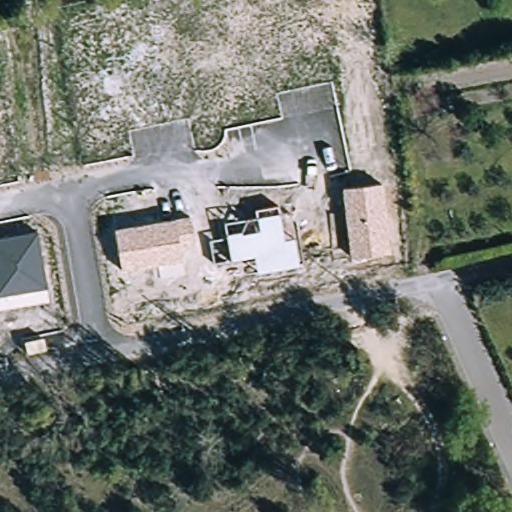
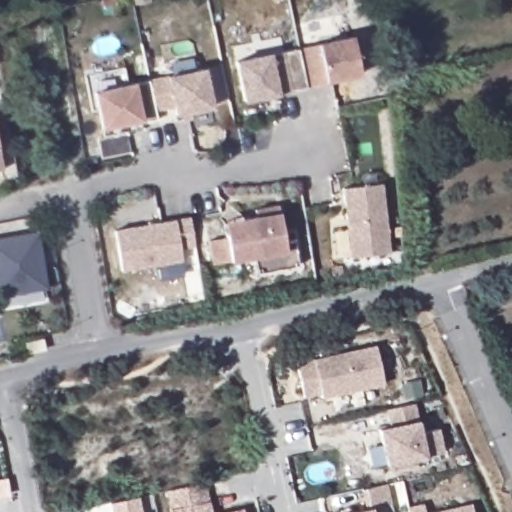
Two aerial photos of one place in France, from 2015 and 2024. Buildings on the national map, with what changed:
new [(242,101),(234,61),(350,35),(360,76),(242,101)]
new [(212,108),(176,116),(174,106),(153,111),(155,120),(140,122),(101,129),(93,92),(203,69),(212,108)]
new [(0,159),(2,170),(0,170),(0,159)]
unchanged [(384,183),(392,253),(352,258),(342,187),(384,183)]
unchanged [(242,232),(243,234),(260,232),(258,218),(280,213),(285,240),(295,238),(300,266),(258,274),(255,257),(232,261),(227,234),(242,232)]
unchanged [(115,229),(190,218),(196,247),(182,249),(183,262),(122,271),(115,229)]
new [(258,218),(260,232),(227,234),(225,220),(258,218)]
unchanged [(48,289),(0,297),(0,238),(38,233),(48,289)]
new [(385,387),(322,399),(321,393),(303,397),(298,363),(375,346),(385,387)]
new [(442,453),(425,458),(384,466),(377,429),(387,427),(385,411),(414,405),(418,421),(422,434),(437,430),(442,453)]
new [(165,492),(207,483),(210,501),(212,512),(169,512),(168,510),(165,492)]
new [(365,510),(360,492),(387,484),(393,512),(352,512),(365,510)]
new [(110,502),(138,495),(142,512),(111,512),(110,502)]
new [(407,508),(423,504),(425,512),(408,512),(407,508)]
new [(473,512),(439,512),(471,506),(473,512)]
new [(243,509),(244,512),(229,512),(243,509)]

